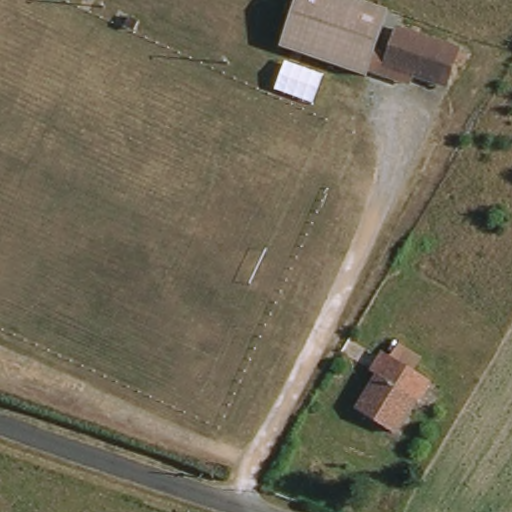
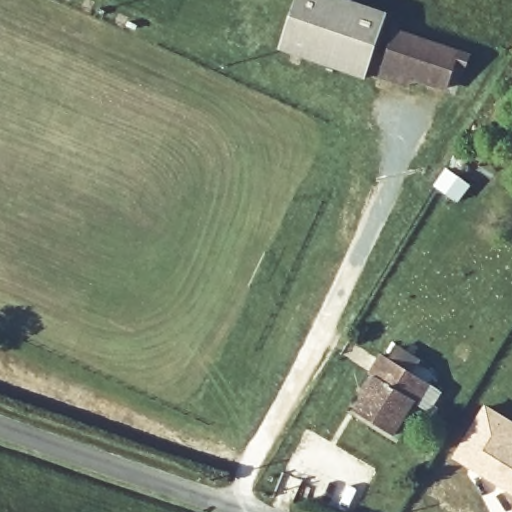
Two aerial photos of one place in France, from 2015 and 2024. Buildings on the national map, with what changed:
unchanged [(376,47),(389,52),(384,65),(418,78),(415,89),(368,72),(367,79),(281,49),(297,0),(355,0),(387,11),(376,47)]
unchanged [(389,52),(396,32),(457,55),(444,87),(418,78),(384,65),(389,52)]
unchanged [(372,373),(383,357),(393,362),(403,346),(423,356),(413,373),(436,389),(430,397),(422,404),(415,400),(392,433),(358,410),(379,378),(372,373)]
new [(512,420),(512,494),(450,457),(484,403),(512,420)]

